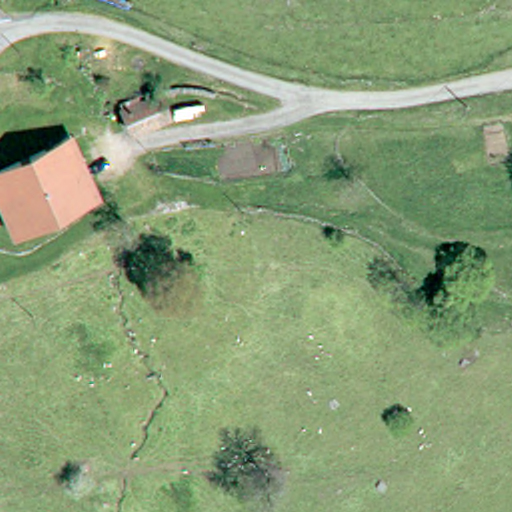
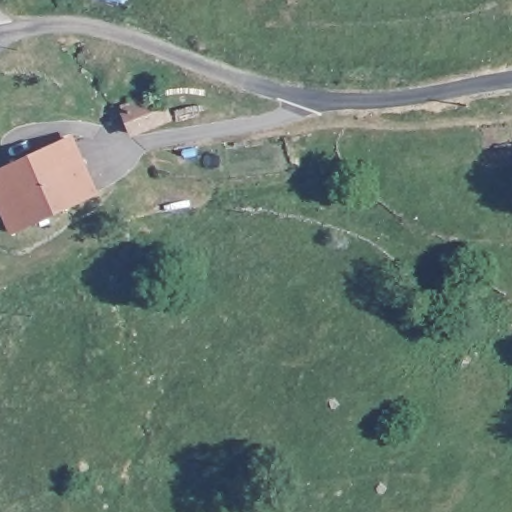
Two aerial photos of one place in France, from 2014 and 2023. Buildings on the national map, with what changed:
unchanged [(130,131),(122,109),(161,94),(170,116),(130,131)]
unchanged [(0,222),(0,167),(42,148),(40,141),(61,132),(90,190),(5,232),(0,222)]

